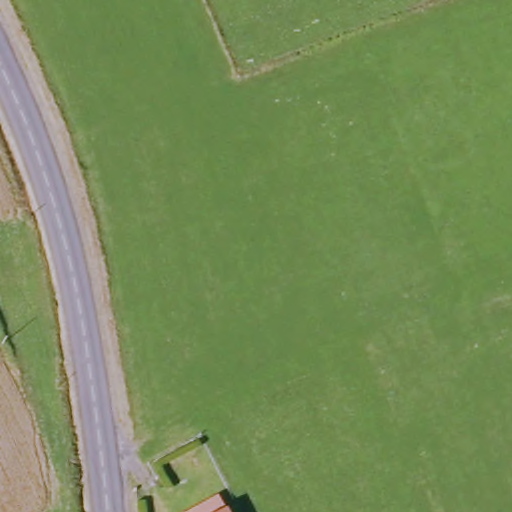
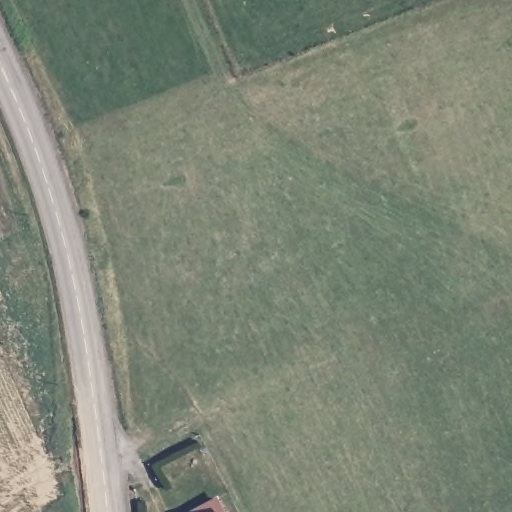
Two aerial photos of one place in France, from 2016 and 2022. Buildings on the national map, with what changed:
unchanged [(220,512),(205,512),(216,506),(220,512)]

